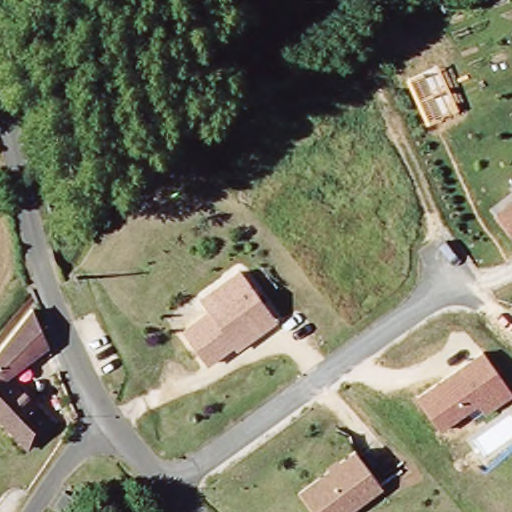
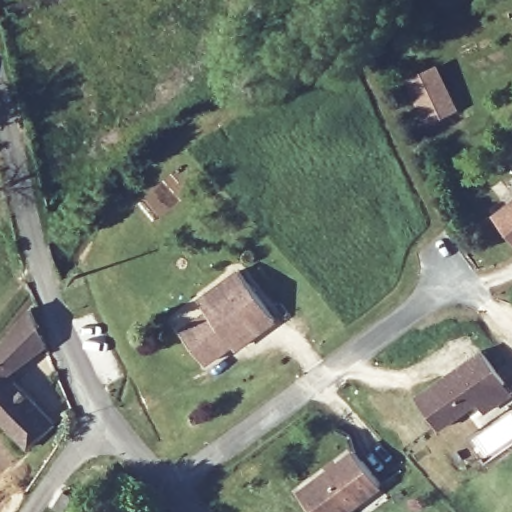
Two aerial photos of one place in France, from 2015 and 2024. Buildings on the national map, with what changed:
new [(404,81),(436,65),(456,111),(425,125),(404,81)]
unchanged [(512,195),(512,235),(493,210),(512,195)]
unchanged [(204,313),(196,299),(236,271),(274,324),(205,369),(180,328),(204,313)]
unchanged [(10,377),(55,423),(30,448),(0,419),(0,350),(36,307),(51,342),(10,377)]
unchanged [(512,396),(486,415),(479,405),(440,430),(415,394),(480,350),(512,391),(512,396)]
unchanged [(322,472),(322,465),(334,457),(337,459),(351,450),(379,489),(348,512),(310,512),(296,491),(322,472)]

